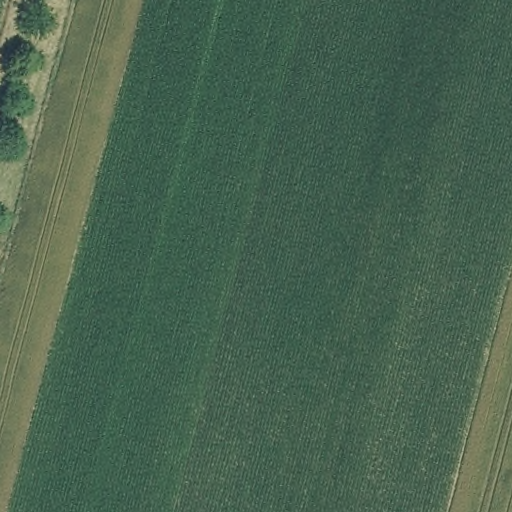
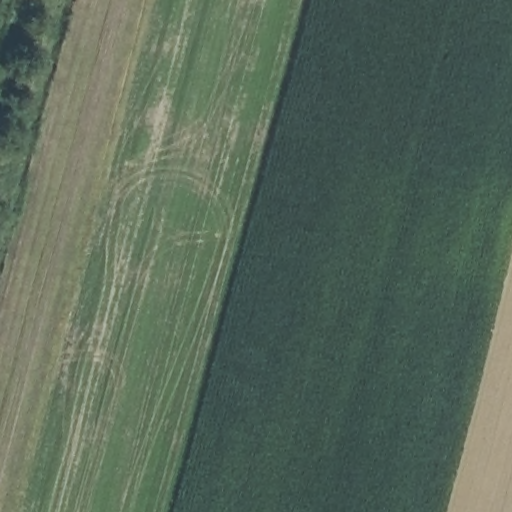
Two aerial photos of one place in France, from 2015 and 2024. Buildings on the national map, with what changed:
[]

